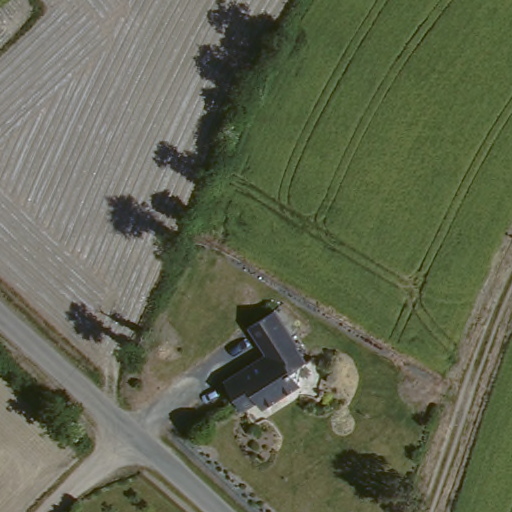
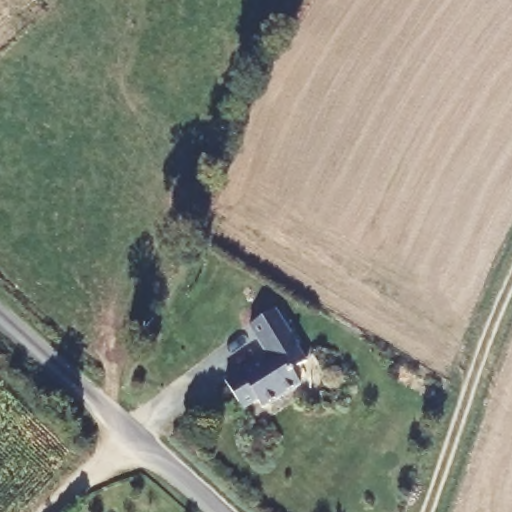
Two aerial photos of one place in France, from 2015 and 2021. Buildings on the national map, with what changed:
unchanged [(274,316),(290,345),(303,368),(290,374),(299,391),(260,412),(254,404),(239,412),(221,380),(250,364),(251,368),(263,361),(247,328),(274,316)]

